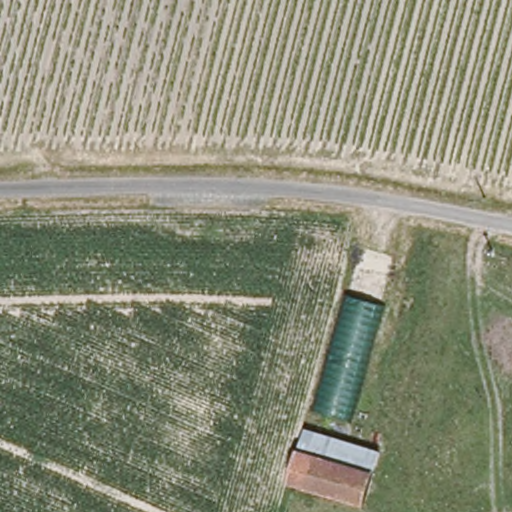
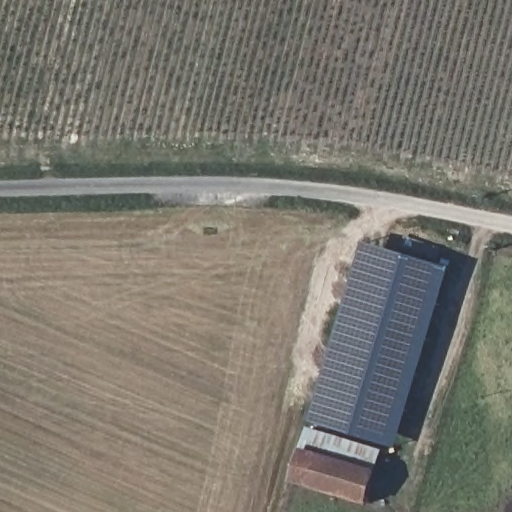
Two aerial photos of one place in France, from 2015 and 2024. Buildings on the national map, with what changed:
new [(357,421),(390,305),(347,292),(363,240),(450,268),(396,447),(309,420),(312,409),(357,421)]
new [(357,421),(312,409),(347,292),(390,305),(357,421)]
new [(367,505),(291,482),(302,446),(308,427),(383,451),(378,471),(367,505)]
demolished [(374,490),(361,485),(303,468),(312,439),(382,461),(374,490)]

